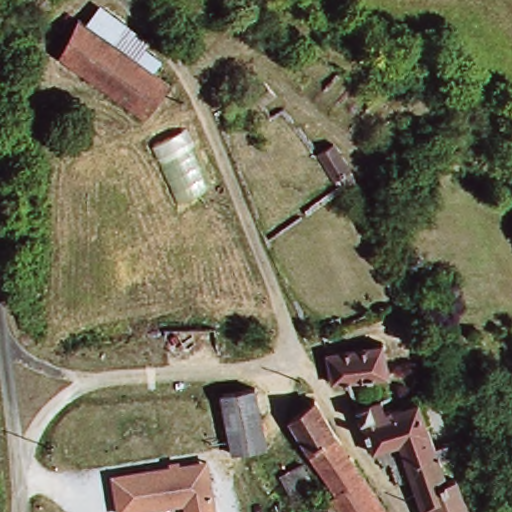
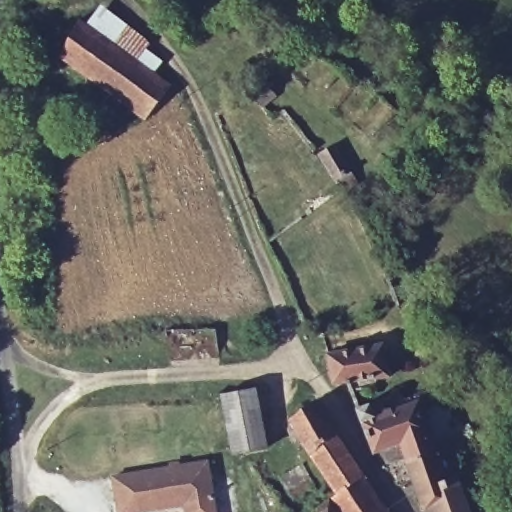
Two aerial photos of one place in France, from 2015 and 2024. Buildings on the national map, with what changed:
unchanged [(106,3),(156,40),(151,47),(167,60),(159,74),(91,25),(106,3)]
unchanged [(67,57),(91,25),(159,74),(175,86),(152,119),(67,57)]
unchanged [(262,108),(250,91),(266,80),(278,96),(262,108)]
new [(202,192),(195,196),(188,182),(175,188),(157,148),(185,135),(203,175),(196,179),(202,192)]
unchanged [(340,187),(318,155),(335,144),(360,182),(344,192),(340,187)]
unchanged [(376,452),(352,380),(340,382),(335,355),(387,344),(393,373),(368,378),(373,404),(420,388),(439,445),(393,465),(387,466),(380,451),(376,452)]
unchanged [(229,394),(259,385),(279,440),(250,448),(246,450),(237,422),(229,394)]
unchanged [(300,417),(325,400),(373,475),(345,490),(300,417)]
unchanged [(451,477),(465,474),(478,512),(447,512),(444,505),(429,510),(417,478),(400,485),(393,465),(439,445),(454,440),(458,451),(443,457),(451,477)]
unchanged [(221,512),(189,512),(188,507),(160,512),(120,512),(115,478),(210,457),(221,512)]
unchanged [(315,485),(295,496),(283,475),(302,463),(315,485)]
unchanged [(322,511),(347,495),(345,490),(373,475),(399,512),(323,512),(322,511)]

